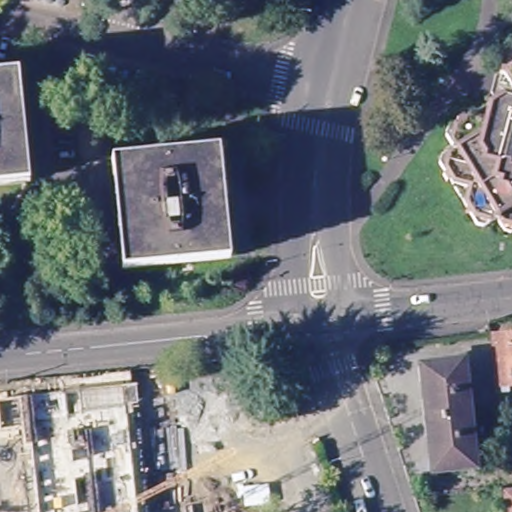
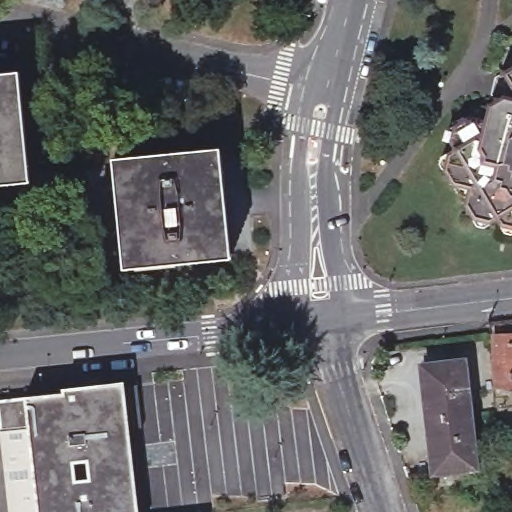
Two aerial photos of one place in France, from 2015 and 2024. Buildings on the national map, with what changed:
unchanged [(501,217),(496,215),(492,217),(481,217),(475,211),(472,210),(471,206),(467,199),(452,176),(447,167),(448,164),(445,163),(448,148),(455,145),(459,130),(471,122),(484,126),(490,101),(495,97),(497,87),(502,68),(504,61),(508,61),(508,64),(512,65),(512,221),(504,220),(501,217)]
unchanged [(19,77),(28,166),(29,180),(0,183),(0,79),(19,77)]
unchanged [(215,155),(226,254),(130,266),(119,164),(137,163),(215,155)]
unchanged [(492,335),(512,333),(512,383),(498,385),(492,335)]
unchanged [(476,431),(470,431),(474,467),(432,472),(420,367),(462,362),(467,398),(472,397),(472,407),(474,421),(475,421),(476,431)]
demolished [(247,381),(253,430),(240,432),(175,438),(175,439),(20,456),(0,458),(0,409),(247,381)]
new [(2,431),(0,411),(0,403),(25,400),(62,396),(61,391),(122,383),(138,512),(39,512),(28,427),(2,431)]
new [(28,427),(39,512),(9,512),(2,431),(28,427)]
demolished [(207,512),(201,469),(224,467),(239,466),(244,512),(207,512)]
unchanged [(512,488),(512,512),(507,512),(505,488),(512,488)]

